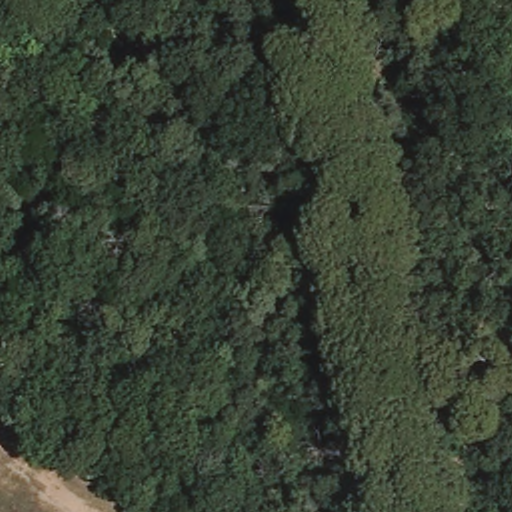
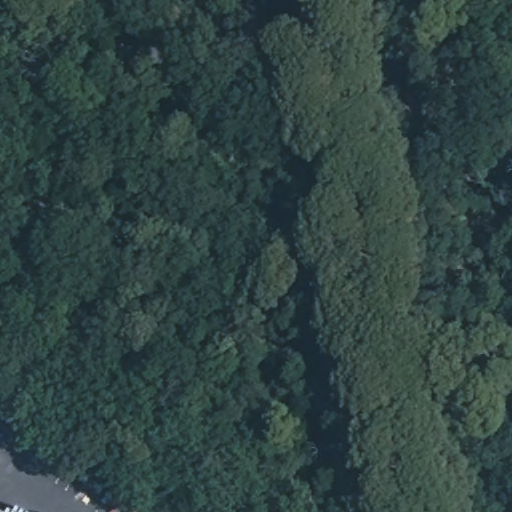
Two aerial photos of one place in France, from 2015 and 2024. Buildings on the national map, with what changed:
[]

